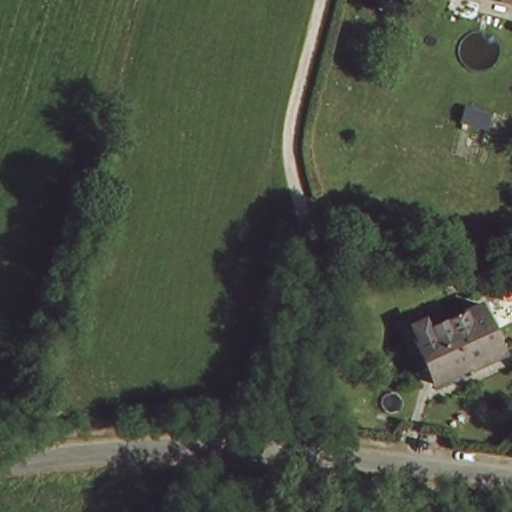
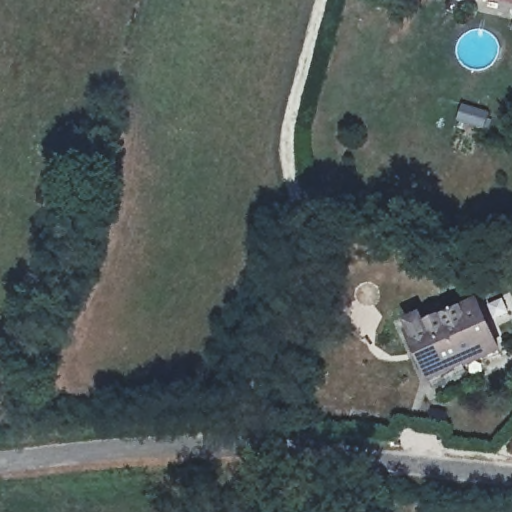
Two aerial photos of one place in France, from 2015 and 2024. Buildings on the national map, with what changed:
unchanged [(407,335),(478,305),(498,355),(428,385),(407,335)]

